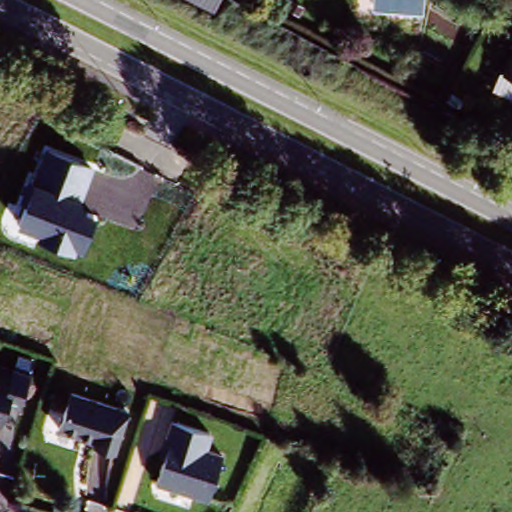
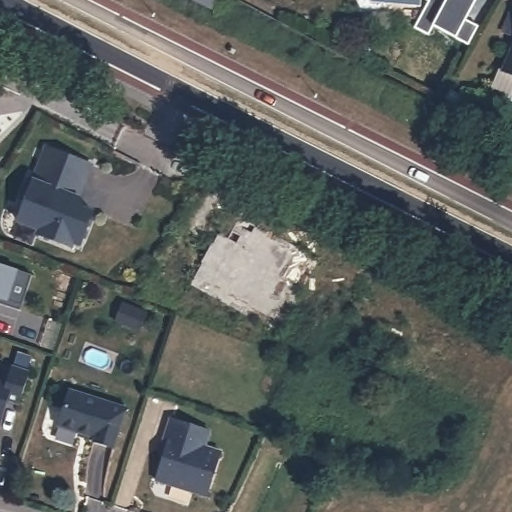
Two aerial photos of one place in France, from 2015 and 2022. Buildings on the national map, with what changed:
unchanged [(193,0),(218,0),(213,11),(193,0)]
unchanged [(371,2),(371,0),(419,0),(419,4),(371,2)]
unchanged [(509,34),(512,27),(512,35),(509,34)]
unchanged [(511,73),(512,70),(512,73),(511,73)]
unchanged [(93,164),(77,205),(94,212),(80,247),(75,246),(73,253),(34,237),(37,231),(17,224),(48,146),(93,164)]
new [(19,314),(0,308),(0,268),(31,278),(19,314)]
unchanged [(8,370),(25,376),(15,403),(1,398),(0,404),(0,372),(7,375),(8,370)]
unchanged [(80,431),(59,423),(70,387),(128,407),(115,447),(94,440),(79,435),(80,431)]
unchanged [(0,414),(0,407),(1,410),(0,414)]
unchanged [(204,446),(223,452),(208,495),(155,478),(163,455),(161,451),(163,444),(166,435),(171,417),(209,428),(204,446)]

